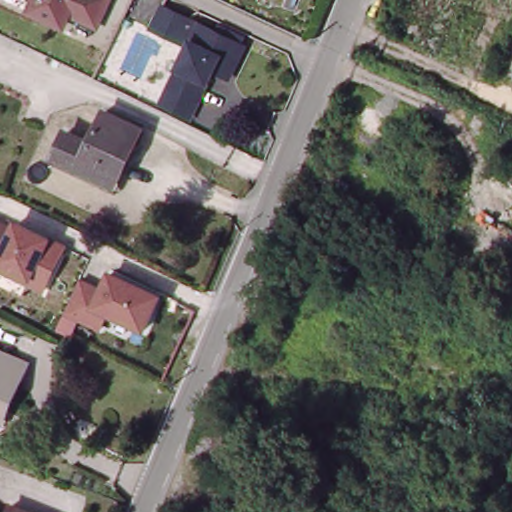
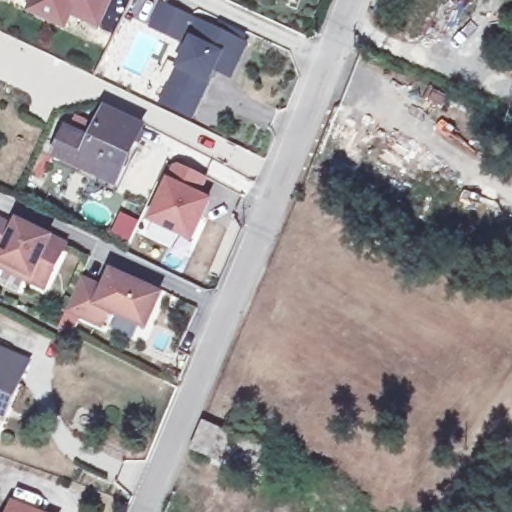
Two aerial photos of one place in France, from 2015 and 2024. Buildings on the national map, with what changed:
unchanged [(99,25),(78,14),(73,20),(62,15),(59,23),(30,10),(35,0),(111,0),(99,25)]
unchanged [(160,98),(169,77),(186,38),(151,21),(160,0),(162,0),(247,39),(231,69),(214,62),(200,91),(190,112),(160,98)]
unchanged [(121,178),(106,172),(101,181),(52,156),(66,129),(89,138),(108,105),(148,124),(121,178)]
new [(176,164),(210,179),(203,196),(214,200),(194,243),(149,221),(169,179),(176,164)]
unchanged [(16,220),(70,246),(47,293),(0,272),(0,250),(11,226),(16,220)]
unchanged [(11,226),(0,250),(0,221),(11,226)]
unchanged [(112,269),(167,295),(151,333),(112,315),(106,331),(69,314),(85,278),(104,287),(112,269)]
unchanged [(2,421),(0,421),(0,348),(19,357),(7,385),(17,390),(2,421)]
unchanged [(197,444),(208,416),(264,442),(252,468),(197,444)]
unchanged [(39,512),(13,512),(17,503),(39,512)]

